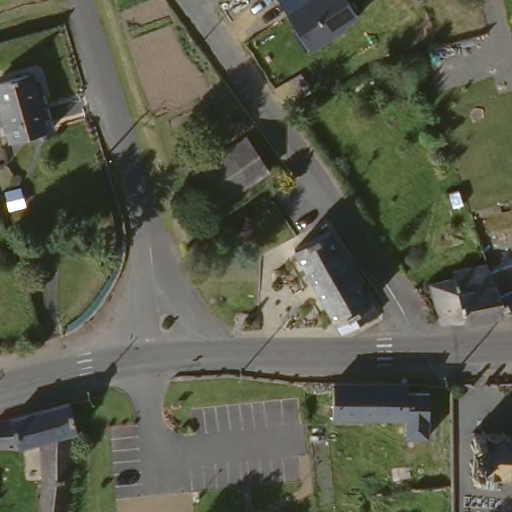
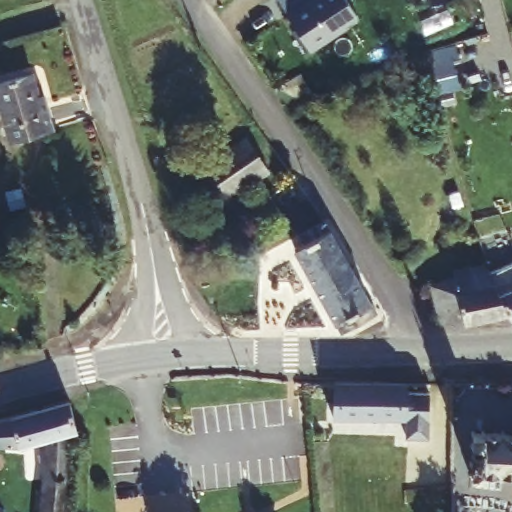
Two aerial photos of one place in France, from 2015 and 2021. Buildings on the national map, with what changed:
unchanged [(347,0),(359,19),(310,51),(278,0),(347,0)]
unchanged [(314,74),(324,88),(296,106),(288,91),(314,74)]
unchanged [(25,91),(36,89),(46,128),(0,138),(0,80),(21,75),(25,91)]
unchanged [(243,146),(264,176),(211,212),(191,183),(243,146)]
unchanged [(286,253),(324,228),(381,325),(364,335),(357,324),(350,327),(341,326),(334,330),(286,253)]
unchanged [(512,261),(512,326),(508,328),(501,316),(481,273),(512,261)]
unchanged [(420,289),(441,283),(439,274),(478,265),(481,273),(501,316),(456,329),(430,329),(420,289)]
unchanged [(403,391),(403,439),(378,438),(379,419),(301,418),(301,380),(304,380),(312,381),(379,383),(379,391),(386,391),(403,391)]
unchanged [(43,507),(35,449),(35,438),(13,449),(0,446),(0,420),(59,404),(67,419),(69,430),(67,512),(43,512),(43,507)]
unchanged [(512,439),(512,480),(471,478),(471,465),(484,466),(484,453),(474,453),(476,438),(512,439)]

